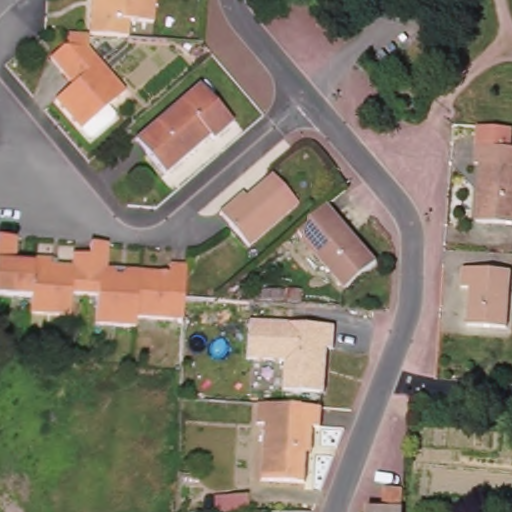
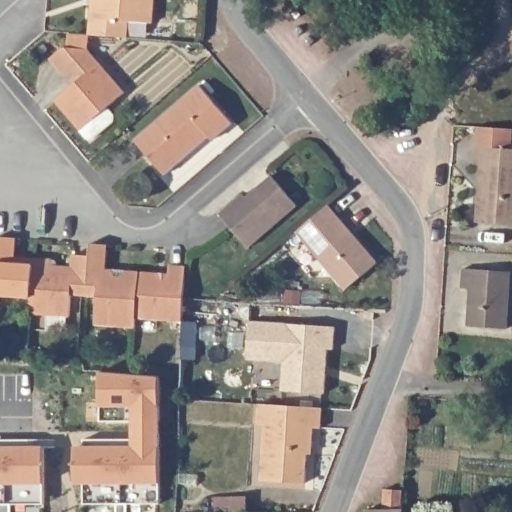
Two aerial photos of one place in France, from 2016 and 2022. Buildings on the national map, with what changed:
unchanged [(101,0),(159,0),(157,22),(132,20),(131,38),(93,34),(95,6),(100,6),(101,0)]
unchanged [(420,19),(417,0),(421,0),(426,0),(430,2),(435,1),(437,20),(421,22),(420,19)]
unchanged [(54,59),(66,47),(70,48),(72,33),(87,34),(92,34),(91,49),(126,94),(84,132),(59,101),(77,84),(54,59)]
unchanged [(235,124),(214,143),(211,139),(166,177),(137,144),(201,86),(235,124)]
unchanged [(486,169),(481,169),(482,150),(483,129),(512,131),(512,227),(483,225),(486,169)]
unchanged [(251,195),(276,174),(301,204),(251,248),(224,213),(247,192),(251,195)]
unchanged [(333,209),(380,265),(348,292),(301,235),(333,209)]
unchanged [(18,237),(19,237),(17,260),(25,264),(36,264),(36,258),(56,258),(56,264),(76,265),(77,254),(93,254),(94,242),(114,243),(112,276),(125,277),(132,271),(146,272),(164,274),(167,277),(177,276),(179,264),(192,264),(191,295),(191,297),(190,318),(190,319),(145,317),(144,324),(105,321),(106,295),(91,294),(76,294),(75,317),(34,314),(34,299),(0,297),(0,235),(18,237)]
unchanged [(467,270),(512,273),(512,317),(512,329),(474,327),(475,289),(467,289),(467,270)]
unchanged [(282,363),(247,360),(251,322),(337,330),(335,354),(328,354),(326,394),(282,392),(282,363)]
new [(86,484),(76,484),(75,447),(84,447),(84,440),(133,440),(133,420),(102,420),(102,407),(101,373),(159,376),(161,484),(161,503),(127,504),(127,512),(117,512),(117,503),(85,504),(86,484)]
unchanged [(305,456),(303,485),(260,482),(264,426),(256,425),(257,407),(257,404),(322,409),(321,429),(312,429),(311,448),(311,457),(305,456)]
new [(12,504),(12,512),(1,512),(1,504),(0,504),(0,440),(44,440),(44,448),(44,486),(44,503),(12,504)]
unchanged [(385,509),(387,487),(406,489),(405,509),(404,512),(370,512),(370,509),(379,509),(385,509)]
unchanged [(287,512),(252,512),(252,497),(266,497),(287,497),(287,512)]

